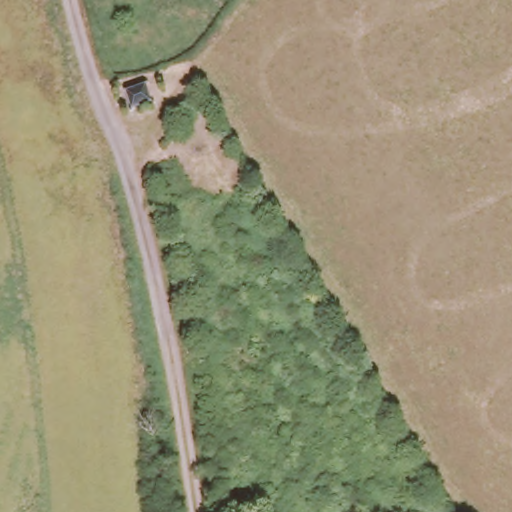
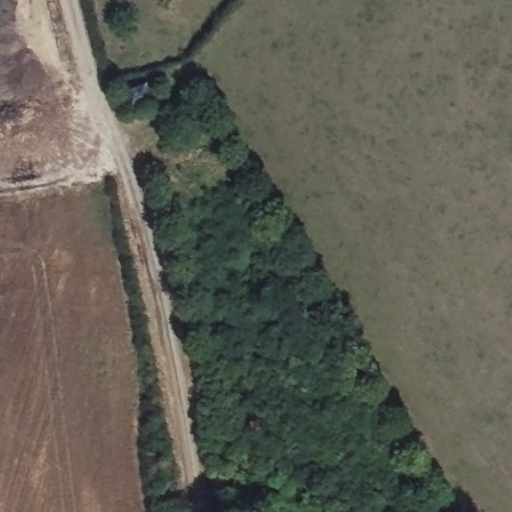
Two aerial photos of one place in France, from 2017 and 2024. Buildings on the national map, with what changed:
unchanged [(153,101),(132,109),(124,88),(146,81),(153,101)]

